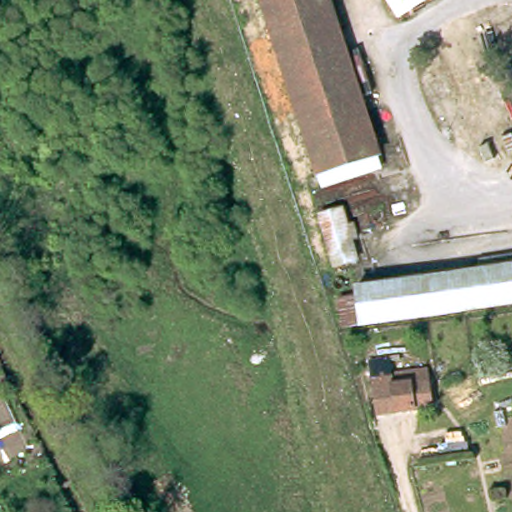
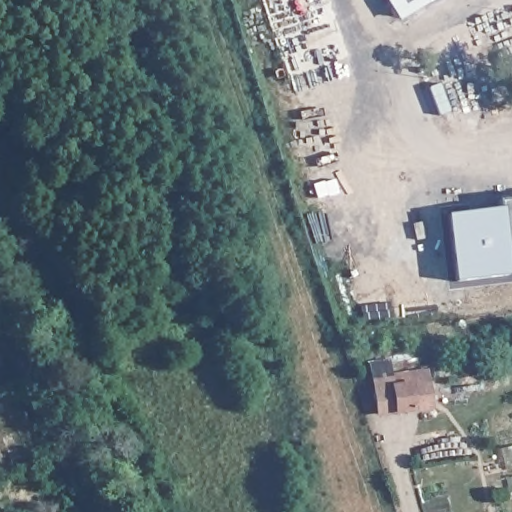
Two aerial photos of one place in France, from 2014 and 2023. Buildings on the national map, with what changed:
demolished [(302,151),(260,0),(325,0),(362,135),(302,151)]
unchanged [(385,0),(422,0),(395,17),(385,0)]
new [(497,200),(512,198),(512,268),(510,268),(510,274),(457,281),(447,212),(498,206),(497,200)]
demolished [(367,209),(379,260),(350,267),(337,216),(367,209)]
demolished [(355,287),(512,265),(512,300),(346,324),(342,297),(357,295),(355,287)]
unchanged [(430,392),(415,393),(416,408),(375,413),(372,386),(370,370),(390,368),(392,383),(428,379),(430,392)]

